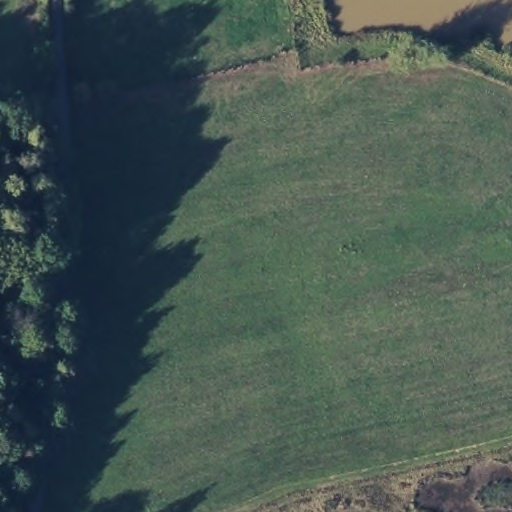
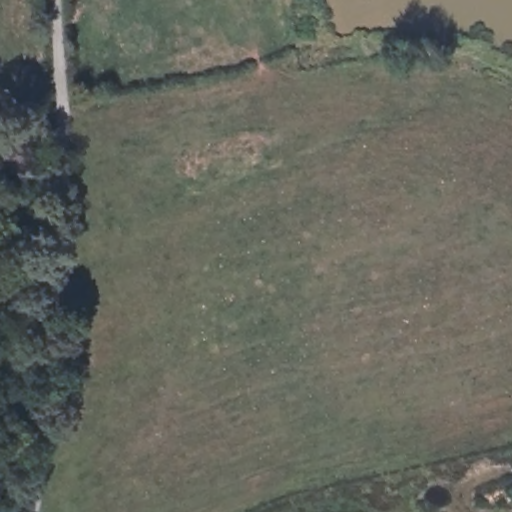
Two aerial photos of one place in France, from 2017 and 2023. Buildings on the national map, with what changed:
[]

